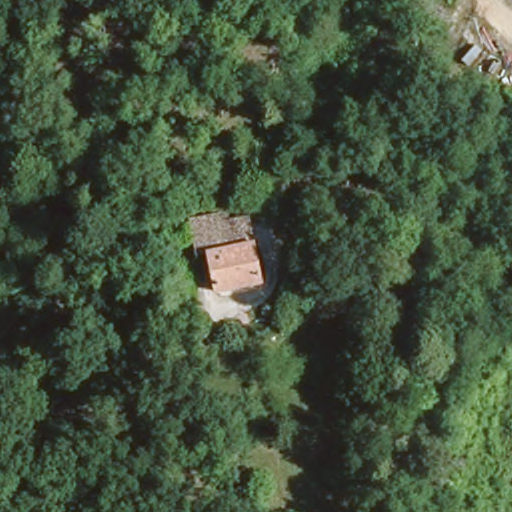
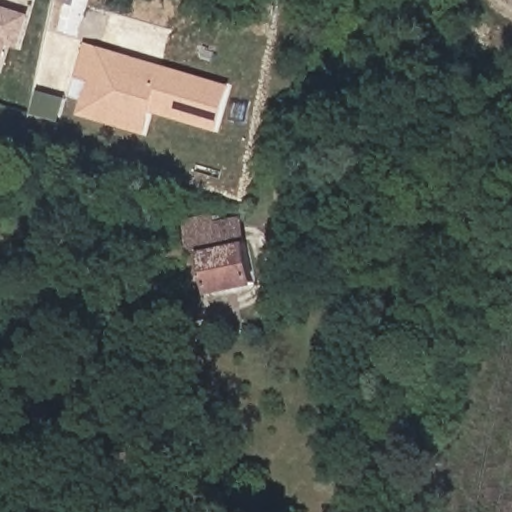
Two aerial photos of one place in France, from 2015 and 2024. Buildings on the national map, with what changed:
new [(35,14),(24,48),(13,45),(7,66),(0,64),(0,4),(35,14)]
new [(74,78),(83,47),(97,51),(122,57),(120,64),(159,74),(161,69),(229,87),(217,129),(151,109),(148,117),(144,132),(80,114),(89,82),(74,78)]
new [(38,114),(44,91),(72,99),(66,121),(38,114)]
unchanged [(262,277),(219,281),(212,237),(184,239),(181,214),(199,211),(199,200),(212,200),(213,210),(254,207),(262,277)]

